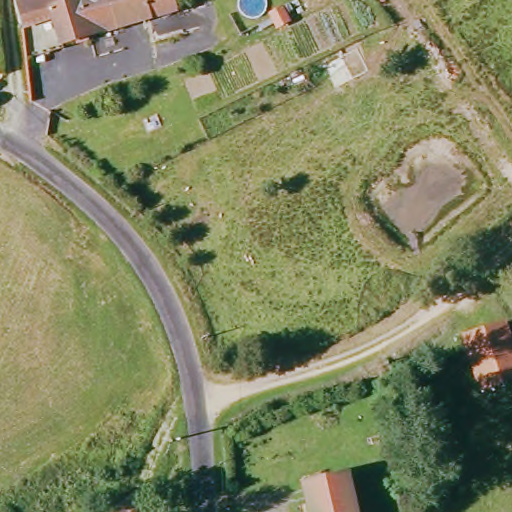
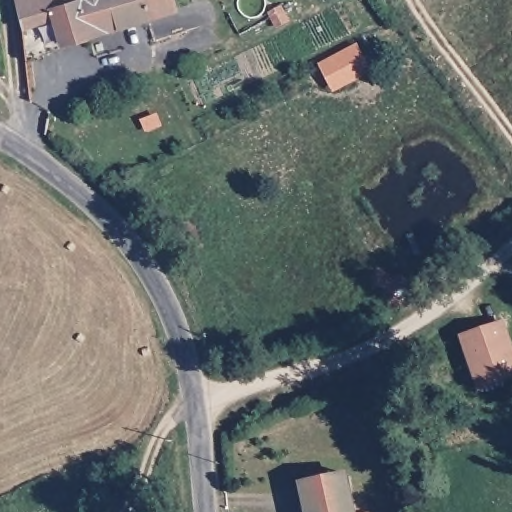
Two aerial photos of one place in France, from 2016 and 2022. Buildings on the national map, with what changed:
unchanged [(20,25),(15,0),(171,0),(174,9),(59,41),(53,15),(20,25)]
unchanged [(20,25),(53,15),(59,41),(61,50),(24,58),(20,25)]
new [(319,65),(357,45),(372,74),(333,94),(319,65)]
unchanged [(467,352),(463,339),(502,325),(507,340),(512,358),(512,379),(478,390),(467,352)]
unchanged [(299,478),(343,475),(347,512),(302,512),(299,478)]

